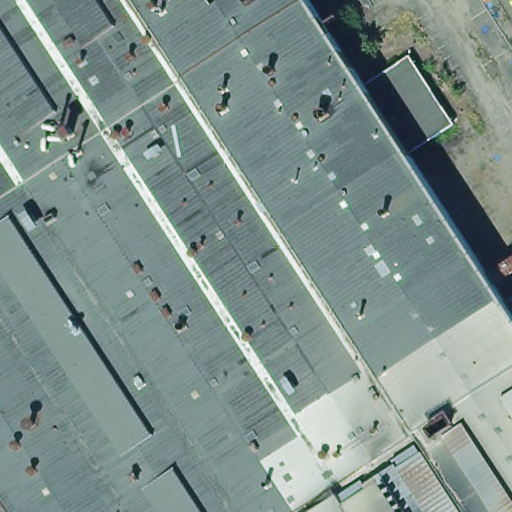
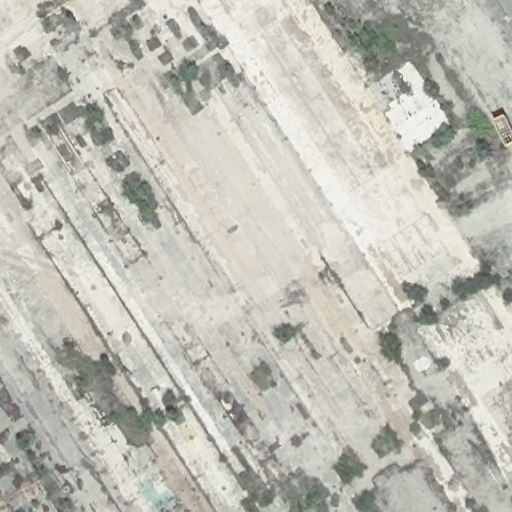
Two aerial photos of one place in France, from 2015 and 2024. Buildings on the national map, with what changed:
demolished [(0,0),(315,0),(367,80),(411,51),(460,125),(413,155),(509,301),(512,299),(512,512),(0,512),(0,0)]

